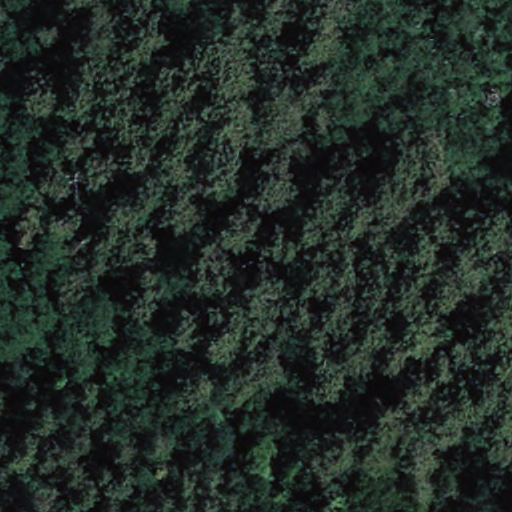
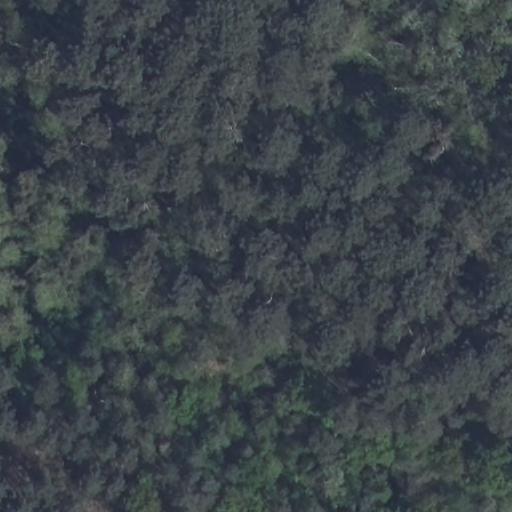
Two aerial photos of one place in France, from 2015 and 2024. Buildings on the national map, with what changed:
[]

